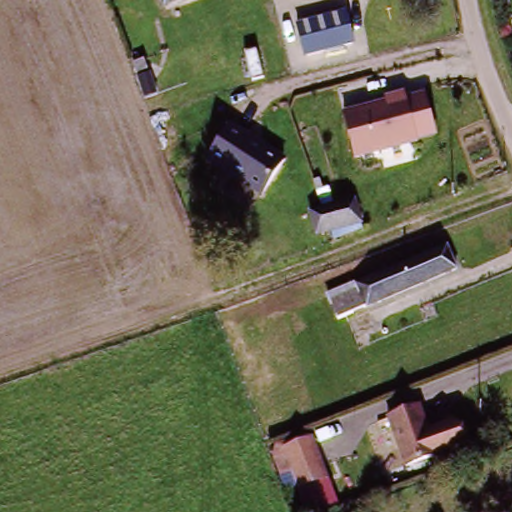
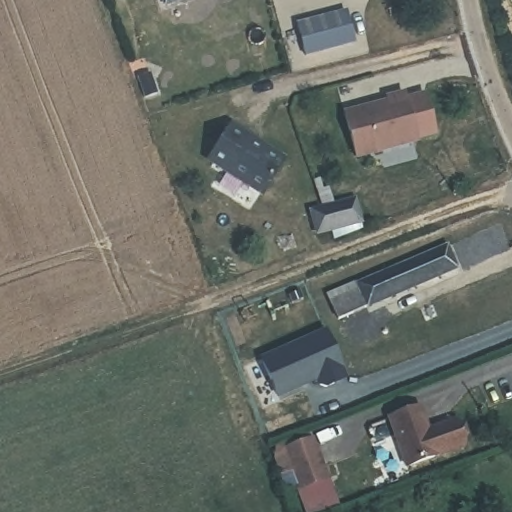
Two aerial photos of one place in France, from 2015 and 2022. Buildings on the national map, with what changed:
unchanged [(164,9),(160,0),(186,0),(164,9)]
unchanged [(352,45),(307,57),(297,20),(342,9),(352,45)]
unchanged [(436,137),(355,160),(340,112),(423,90),(436,137)]
unchanged [(210,161),(232,127),(285,161),(263,196),(210,161)]
unchanged [(306,214),(322,210),(352,200),(360,224),(329,231),(313,237),(306,214)]
unchanged [(326,297),(448,246),(457,267),(335,318),(326,297)]
new [(348,377),(327,387),(317,385),(315,380),(278,398),(260,360),(327,331),(348,377)]
unchanged [(422,431),(425,430),(427,436),(455,428),(462,453),(401,470),(387,420),(418,411),(422,431)]
unchanged [(284,496),(272,458),(280,452),(312,441),(326,481),(284,496)]

